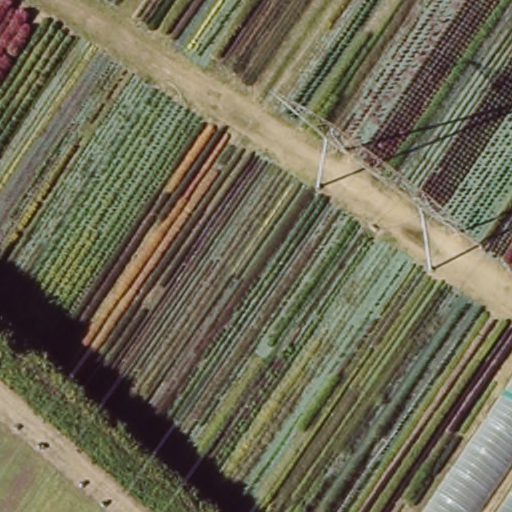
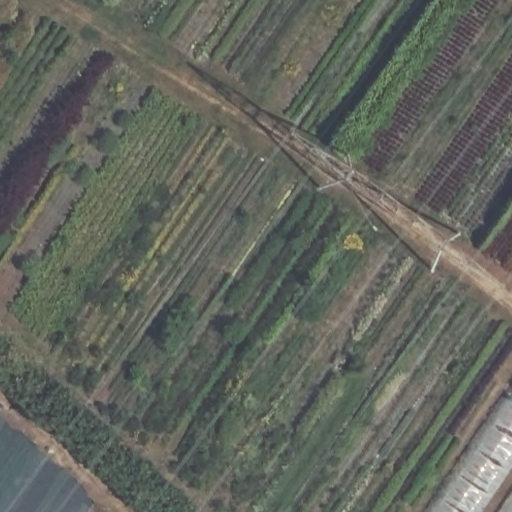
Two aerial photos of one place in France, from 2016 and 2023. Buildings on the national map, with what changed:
unchanged [(480,512),(426,512),(512,382),(512,466),(480,512)]
unchanged [(512,502),(512,512),(505,512),(512,502)]

